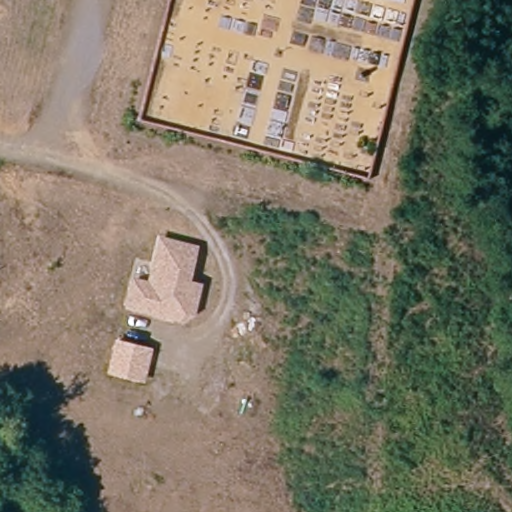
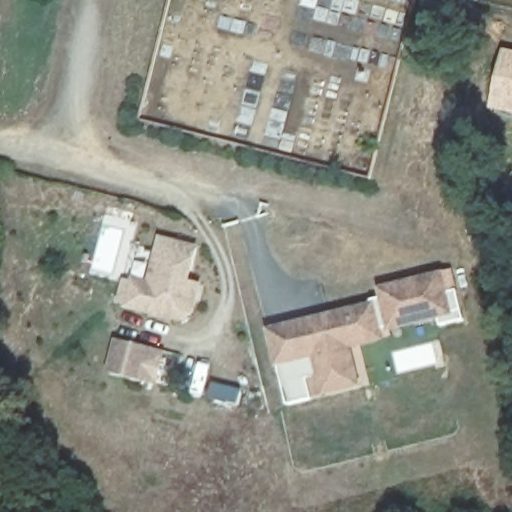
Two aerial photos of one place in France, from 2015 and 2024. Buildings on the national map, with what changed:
unchanged [(151,312),(151,310),(127,304),(133,278),(148,282),(159,237),(193,244),(185,278),(191,279),(198,281),(195,297),(191,299),(192,300),(189,310),(180,316),(171,314),(170,317),(151,312)]
new [(379,302),(377,289),(443,271),(449,294),(457,292),(464,322),(440,328),(437,319),(382,332),(386,342),(353,350),(363,391),(287,409),(266,330),(379,302)]
new [(166,353),(157,387),(106,374),(114,341),(166,353)]

